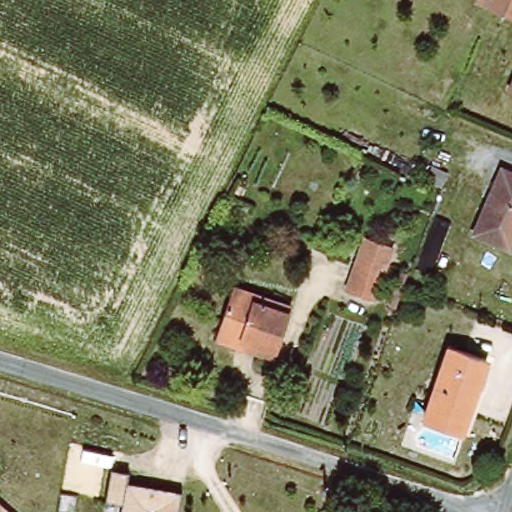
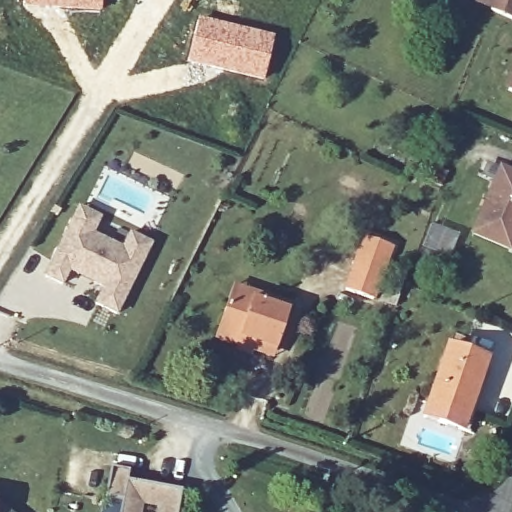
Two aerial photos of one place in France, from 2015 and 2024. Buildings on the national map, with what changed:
new [(22,0),(103,0),(101,14),(21,9),(22,0)]
unchanged [(493,0),(512,0),(512,22),(488,14),(493,0)]
new [(198,17),(275,35),(264,82),(187,63),(198,17)]
unchanged [(512,87),(512,97),(508,95),(512,87)]
unchanged [(471,239),(500,170),(512,174),(512,244),(507,254),(471,239)]
new [(67,272),(60,286),(44,278),(67,229),(77,209),(99,219),(90,235),(104,242),(105,247),(119,254),(128,235),(149,245),(115,316),(95,305),(102,288),(92,284),(77,277),(67,272)]
unchanged [(366,301),(337,290),(359,239),(387,250),(376,276),(366,301)]
unchanged [(231,350),(208,341),(221,307),(228,290),(250,298),(285,311),(270,354),(267,362),(231,350)]
unchanged [(484,362),(455,433),(418,419),(445,348),(484,362)]
unchanged [(104,498),(109,467),(128,471),(126,481),(180,492),(177,512),(120,512),(121,501),(104,498)]
unchanged [(11,512),(0,512),(0,502),(11,512)]

